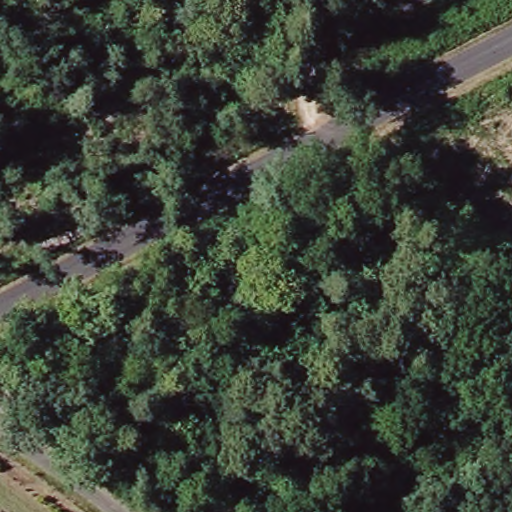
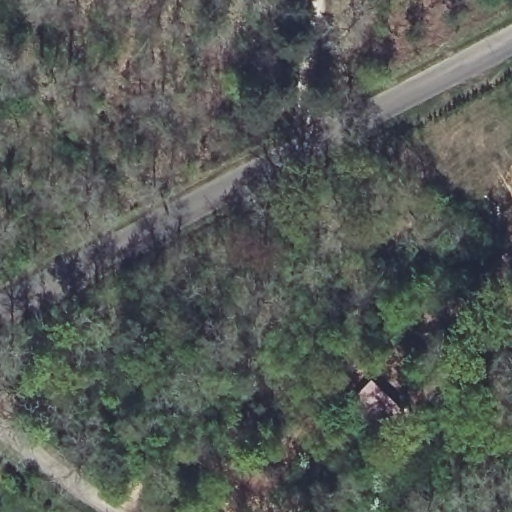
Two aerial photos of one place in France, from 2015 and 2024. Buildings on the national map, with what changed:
[]

